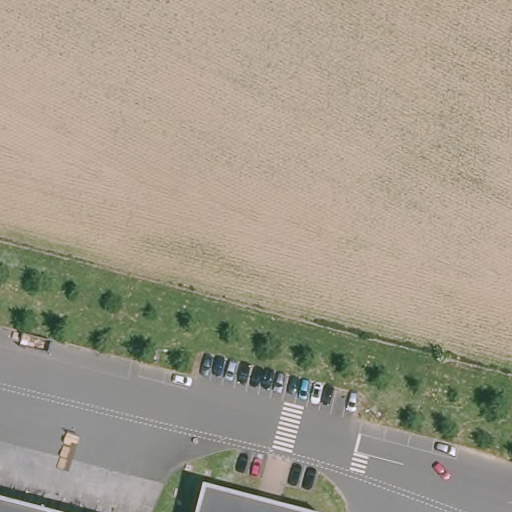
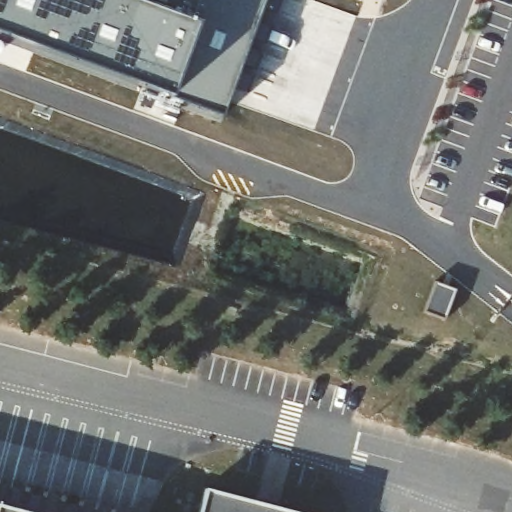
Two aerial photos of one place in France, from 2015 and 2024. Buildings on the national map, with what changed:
new [(0,40),(0,0),(263,0),(221,119),(0,40)]
unchanged [(202,491),(280,512),(196,512),(202,491)]
unchanged [(0,508),(16,512),(0,512),(0,508)]

